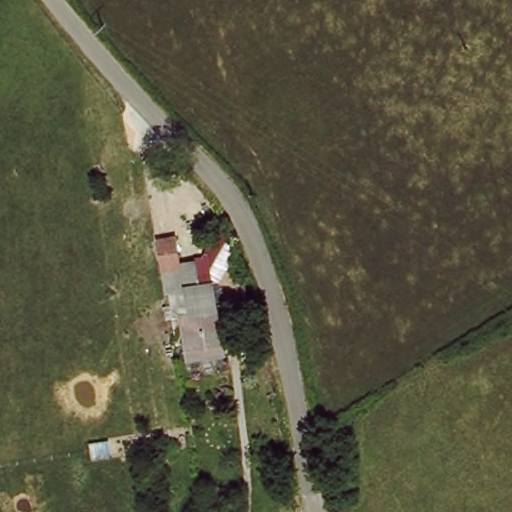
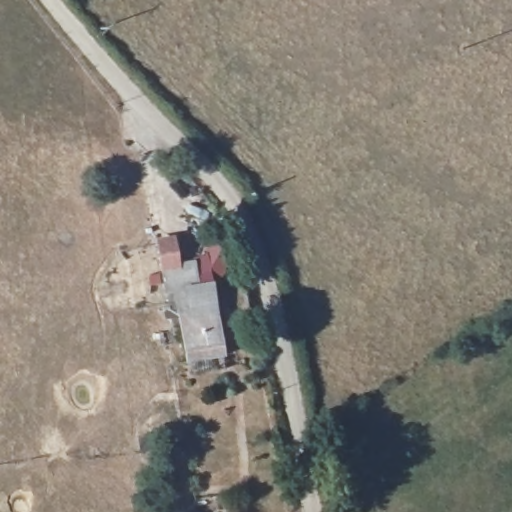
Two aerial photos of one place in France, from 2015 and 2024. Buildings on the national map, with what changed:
unchanged [(175,293),(161,294),(152,236),(179,232),(184,260),(203,257),(208,282),(193,285),(195,310),(219,305),(228,353),(187,362),(175,293)]

